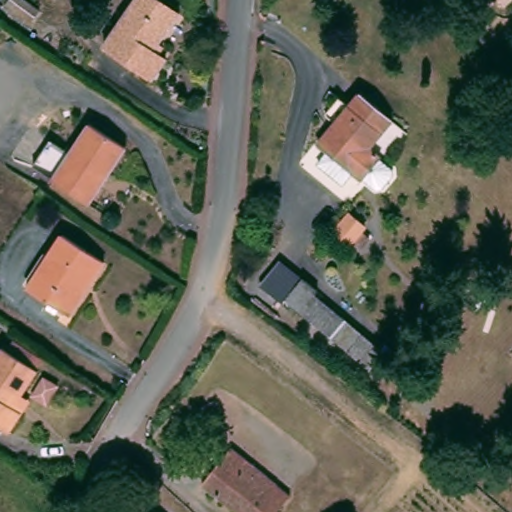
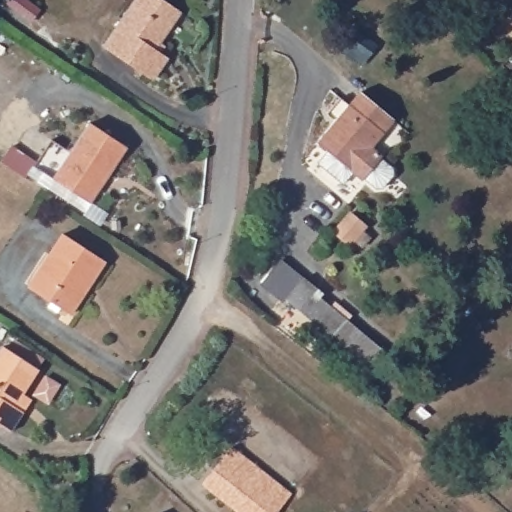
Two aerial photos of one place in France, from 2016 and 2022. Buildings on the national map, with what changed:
unchanged [(158,49),(169,58),(153,80),(101,44),(134,0),(162,0),(183,15),(158,49)]
unchanged [(348,111),(366,92),(397,121),(382,138),(373,147),(384,158),(383,159),(394,169),(394,176),(383,189),(376,189),(365,178),(364,180),(354,171),(344,183),(320,160),(330,149),(321,140),(348,111)]
unchanged [(125,153),(86,204),(53,178),(93,126),(125,153)]
unchanged [(354,233),(368,246),(351,264),(337,250),(354,233)]
unchanged [(108,265),(96,279),(92,276),(79,293),(84,298),(71,314),(33,285),(68,235),(108,265)]
unchanged [(310,279),(324,291),(320,294),(366,334),(388,352),(391,354),(374,374),(371,371),(349,352),(291,302),(310,279)]
unchanged [(0,350),(4,344),(39,371),(14,403),(0,393),(0,350)]
unchanged [(19,413),(5,430),(0,426),(0,393),(14,403),(11,407),(19,413)]
unchanged [(274,512),(236,512),(202,482),(235,442),(286,488),(292,493),(274,512)]

